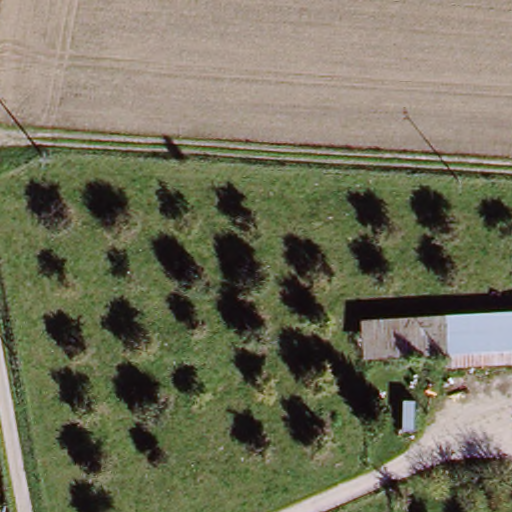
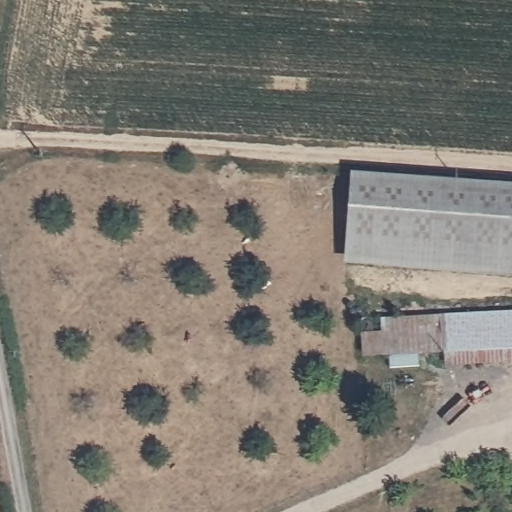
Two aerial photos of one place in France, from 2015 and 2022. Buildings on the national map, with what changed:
new [(512,186),(512,276),(351,263),(359,174),(512,186)]
unchanged [(512,312),(512,362),(440,366),(441,356),(360,361),(358,320),(512,312)]

